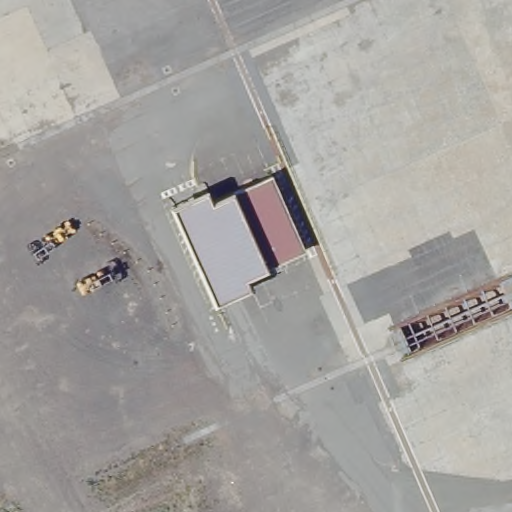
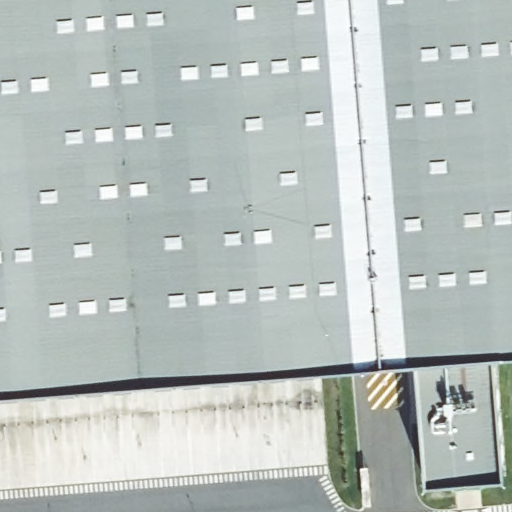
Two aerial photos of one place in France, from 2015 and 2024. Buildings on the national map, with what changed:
new [(481,357),(495,479),(416,486),(407,362),(0,395),(0,0),(512,0),(512,355),(481,357)]
demolished [(279,181),(303,247),(225,276),(201,210),(279,181)]

